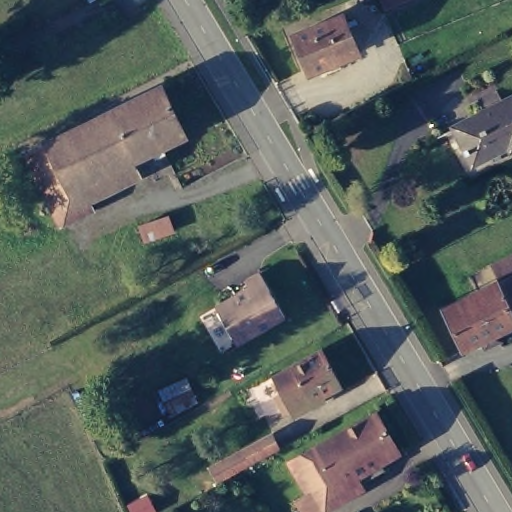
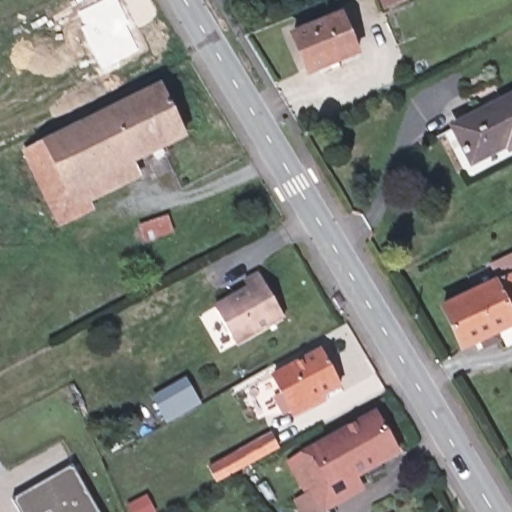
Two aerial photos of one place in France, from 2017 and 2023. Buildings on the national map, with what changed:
unchanged [(33,49),(0,60),(0,21),(18,14),(33,49)]
unchanged [(337,15),(351,52),(305,72),(288,35),(337,15)]
unchanged [(161,80),(184,130),(81,180),(92,205),(61,220),(26,146),(161,80)]
unchanged [(512,141),(501,147),(499,144),(463,160),(446,125),(512,93),(512,141)]
unchanged [(483,263),(507,252),(512,261),(512,319),(489,330),(492,340),(474,347),(471,340),(454,347),(434,306),(489,280),(483,263)]
unchanged [(238,288),(234,282),(251,273),(275,317),(228,343),(208,305),(238,288)]
unchanged [(328,350),(346,383),(298,411),(281,415),(273,398),(287,390),(280,375),(328,350)]
new [(186,376),(198,402),(170,416),(158,390),(186,376)]
unchanged [(404,446),(385,457),(389,464),(377,470),(371,465),(319,493),(326,506),(315,512),(310,512),(300,495),(314,487),(296,453),(382,406),(404,446)]
unchanged [(205,469),(271,433),(279,447),(230,475),(213,483),(205,469)]
new [(73,465),(99,512),(21,512),(13,499),(73,465)]

